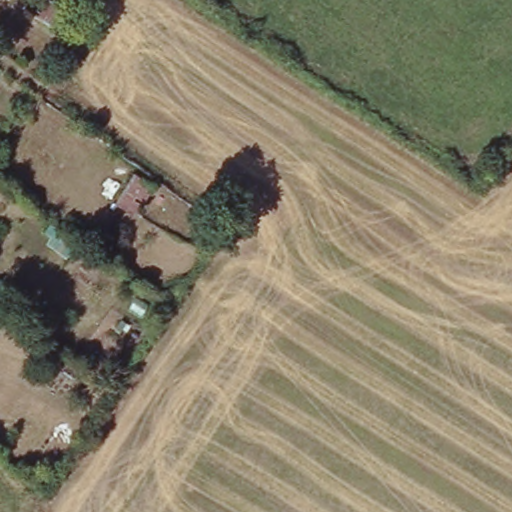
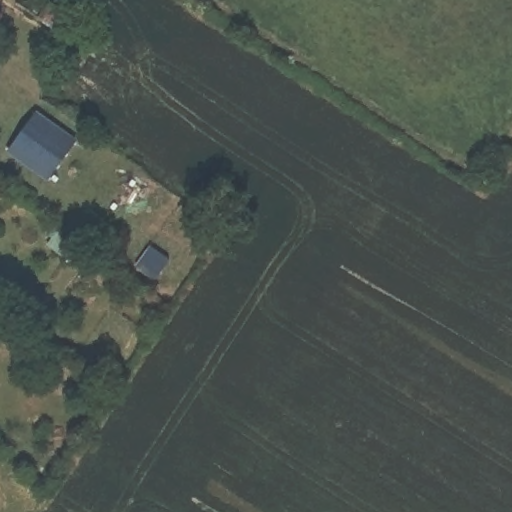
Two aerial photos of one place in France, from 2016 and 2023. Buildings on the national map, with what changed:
new [(34,113),(76,141),(50,179),(8,150),(34,113)]
unchanged [(137,172),(157,186),(140,217),(115,204),(137,172)]

